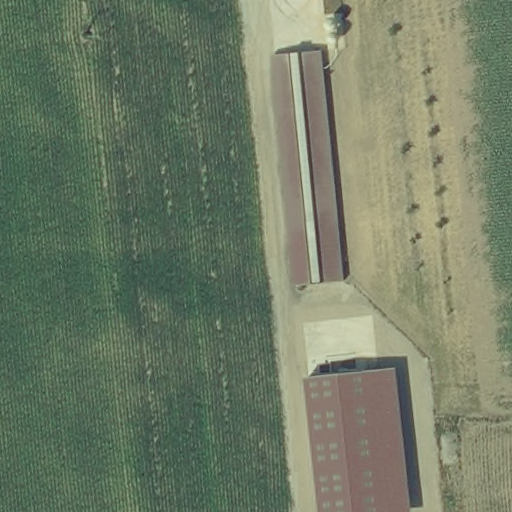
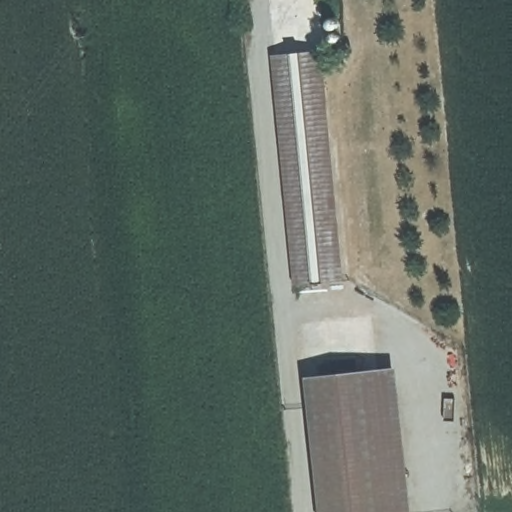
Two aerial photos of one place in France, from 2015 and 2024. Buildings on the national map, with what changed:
unchanged [(322,51),(346,280),(296,285),(272,55),(322,51)]
unchanged [(398,367),(414,512),(322,512),(307,378),(398,367)]

